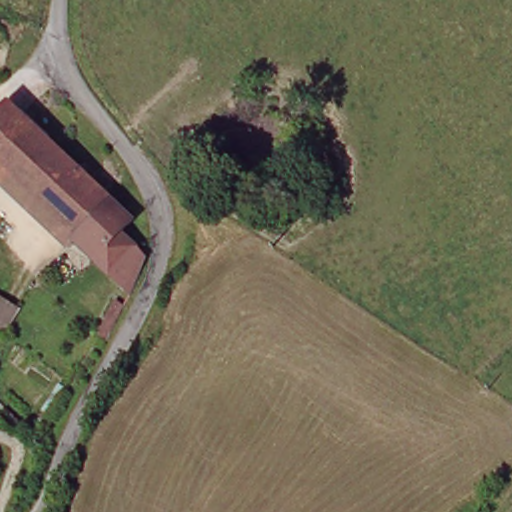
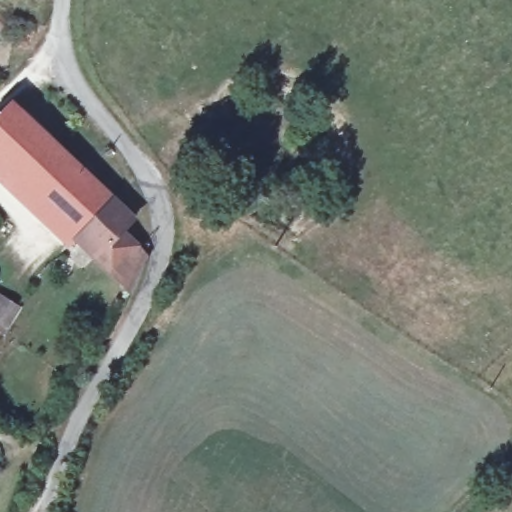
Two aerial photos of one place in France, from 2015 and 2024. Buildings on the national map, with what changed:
unchanged [(115,236),(141,256),(136,271),(126,290),(0,175),(0,111),(3,108),(128,219),(115,236)]

